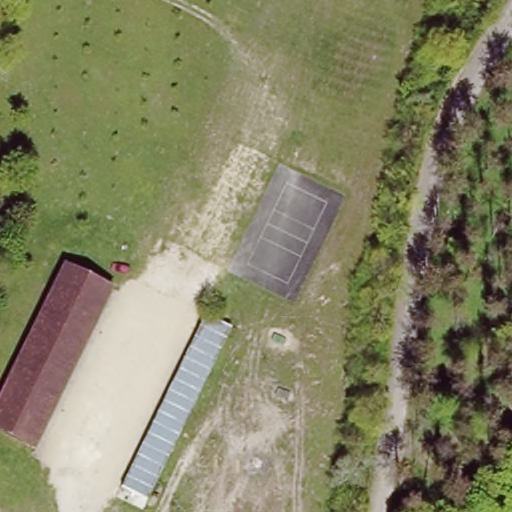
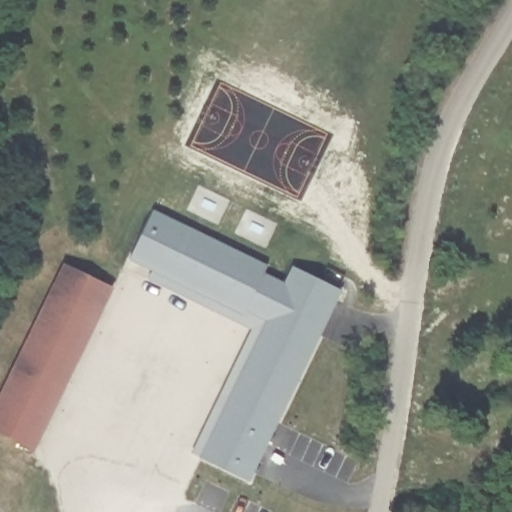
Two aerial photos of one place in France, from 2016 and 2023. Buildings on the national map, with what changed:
new [(250,481),(200,458),(266,320),(247,310),(245,315),(152,270),(130,260),(153,210),(268,265),(265,272),(285,281),(292,265),(343,290),(250,481)]
unchanged [(0,390),(68,257),(121,287),(39,453),(0,432),(0,390)]

